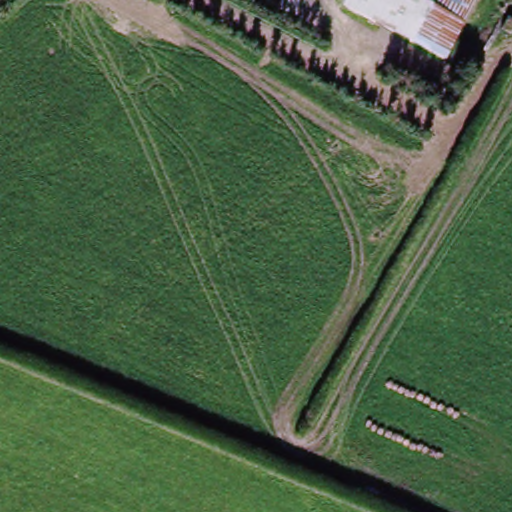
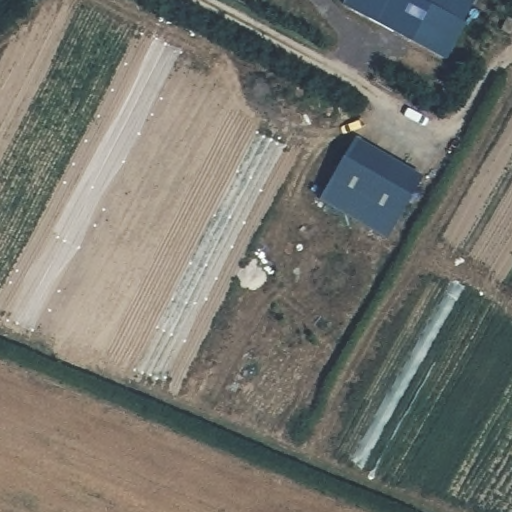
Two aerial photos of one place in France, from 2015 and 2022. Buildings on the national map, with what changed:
unchanged [(343,5),(346,0),(475,0),(444,59),(343,5)]
new [(423,178),(387,239),(321,199),(357,140),(423,178)]

